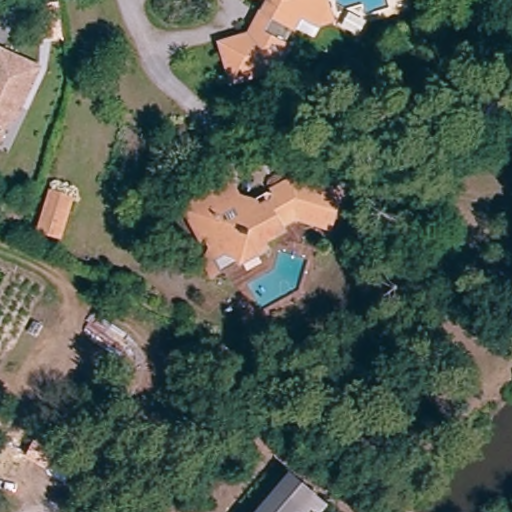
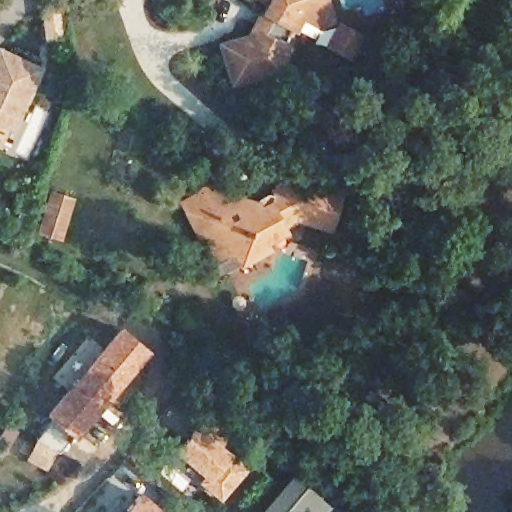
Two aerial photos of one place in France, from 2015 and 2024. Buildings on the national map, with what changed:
unchanged [(270,0),(324,0),(327,8),(331,18),(320,21),(312,34),(292,23),(285,39),(291,43),(280,63),(237,77),(227,42),(254,31),(257,24),(265,9),(270,0)]
unchanged [(2,41),(42,57),(25,98),(21,96),(10,125),(0,122),(0,46),(2,41)]
unchanged [(201,190),(225,179),(243,213),(219,224),(201,190)]
unchanged [(214,255),(203,232),(219,224),(243,213),(256,206),(276,196),(298,185),(342,199),(336,217),(330,233),(325,230),(302,222),(305,212),(296,211),(277,220),(282,234),(266,242),(263,254),(238,266),(210,280),(201,262),(214,255)]
unchanged [(58,227),(41,222),(51,187),(69,192),(58,227)]
new [(77,369),(119,322),(151,350),(75,439),(70,435),(51,420),(44,414),(77,369)]
unchanged [(245,361),(230,391),(205,379),(219,348),(245,361)]
new [(200,416),(249,465),(219,501),(195,480),(200,475),(170,449),(200,416)]
new [(47,420),(50,422),(51,420),(70,435),(46,471),(24,458),(47,420)]
unchanged [(315,485),(293,512),(249,512),(290,464),(315,485)]
unchanged [(314,512),(293,512),(315,485),(327,496),(314,512)]
new [(170,512),(119,512),(144,487),(170,512)]

